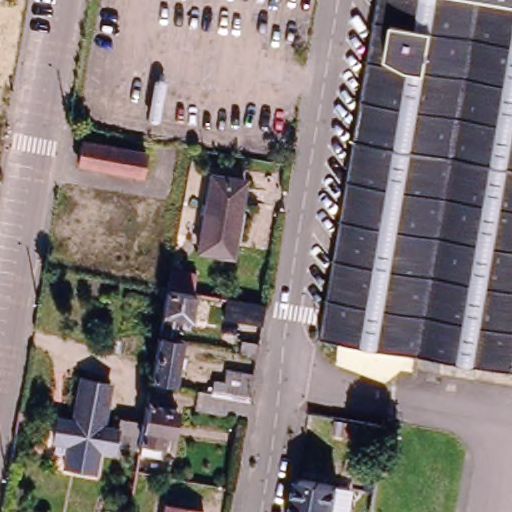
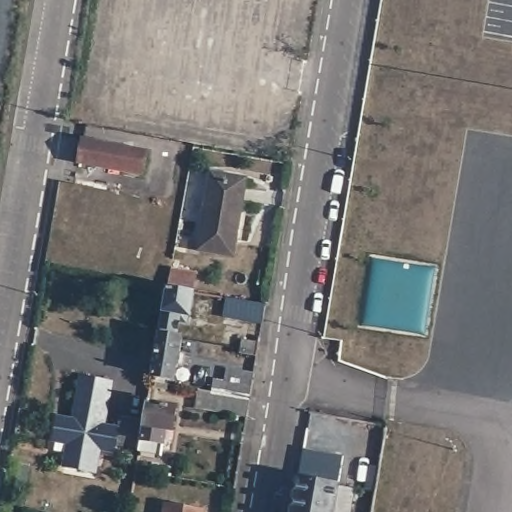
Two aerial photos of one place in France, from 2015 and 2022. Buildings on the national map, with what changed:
demolished [(413,352),(331,337),(318,335),(374,0),(512,0),(512,368),(511,368),(509,383),(470,377),(473,362),(413,352)]
unchanged [(147,152),(143,174),(78,164),(82,142),(147,152)]
demolished [(2,148),(0,160),(0,148),(2,148)]
unchanged [(250,176),(237,252),(205,246),(219,171),(250,176)]
unchanged [(184,323),(182,330),(173,329),(172,337),(162,336),(161,342),(153,341),(161,291),(163,282),(192,287),(190,297),(185,323),(184,323)]
unchanged [(177,345),(174,360),(179,361),(177,371),(172,370),(170,386),(151,383),(149,388),(145,387),(153,341),(161,342),(177,345)]
unchanged [(260,344),(258,357),(241,355),(244,341),(260,344)]
unchanged [(222,394),(227,370),(255,375),(251,399),(248,416),(196,408),(199,391),(222,394)]
unchanged [(110,382),(102,425),(74,420),(81,377),(110,382)]
unchanged [(149,388),(158,390),(157,394),(149,392),(149,388)]
unchanged [(146,403),(176,408),(172,431),(165,430),(160,457),(137,453),(138,448),(140,437),(143,421),(146,403)]
unchanged [(118,445),(117,452),(102,452),(100,479),(67,472),(72,444),(54,442),(59,417),(74,420),(102,425),(112,426),(113,421),(118,422),(119,417),(143,421),(140,437),(138,448),(118,445)]
unchanged [(335,506),(333,512),(292,512),(299,474),(339,480),(335,506)]
demolished [(205,512),(163,512),(170,476),(209,482),(205,512)]
demolished [(372,510),(371,512),(354,512),(355,508),(372,510)]

